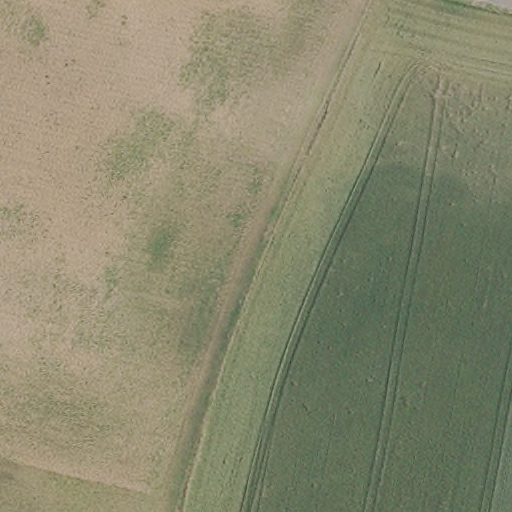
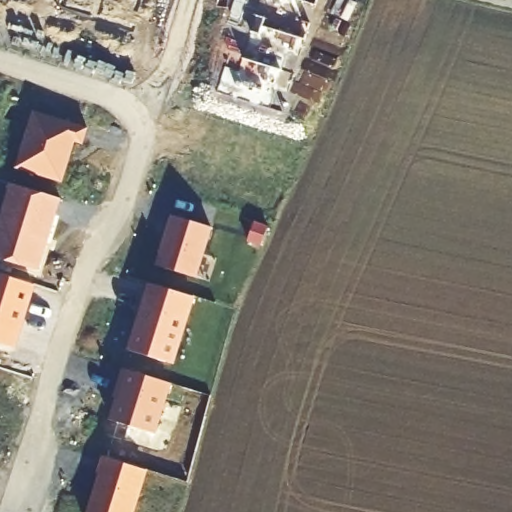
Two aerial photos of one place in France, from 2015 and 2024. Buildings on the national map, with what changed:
new [(217,91),(224,67),(239,71),(262,0),(317,0),(281,112),(217,91)]
new [(14,168),(33,111),(88,127),(83,144),(75,142),(63,183),(14,168)]
new [(0,218),(11,183),(61,198),(39,270),(0,258),(0,218)]
new [(156,264),(171,214),(213,227),(198,278),(156,264)]
new [(5,315),(3,322),(20,328),(13,346),(0,342),(0,276),(32,288),(20,321),(5,315)]
new [(128,350),(148,283),(196,297),(175,364),(128,350)]
new [(109,419),(116,397),(113,396),(123,369),(173,383),(156,434),(109,419)]
new [(101,455),(148,470),(135,512),(84,512),(101,455)]

